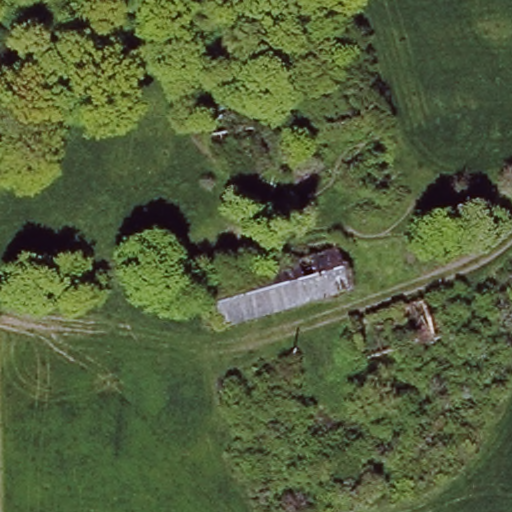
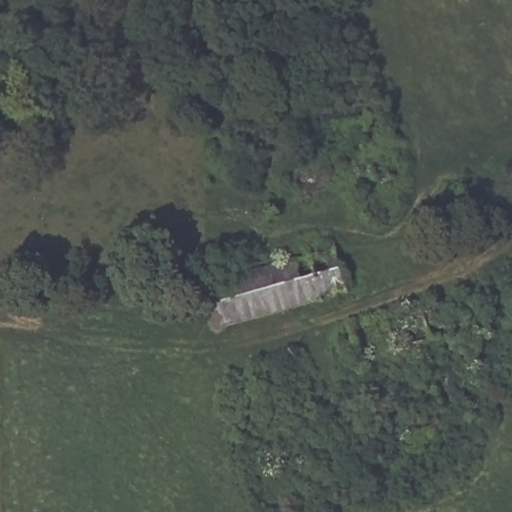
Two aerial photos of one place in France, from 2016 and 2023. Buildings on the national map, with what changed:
unchanged [(252,126),(254,140),(205,147),(201,133),(252,126)]
unchanged [(372,127),(374,134),(320,142),(320,135),(372,127)]
unchanged [(282,268),(279,254),(305,247),(334,240),(348,296),(220,325),(208,285),(240,278),(282,268)]
unchanged [(363,322),(362,317),(438,297),(440,303),(457,300),(466,332),(371,359),(368,345),(356,348),(350,325),(363,322)]
unchanged [(430,425),(438,432),(407,465),(400,457),(430,425)]

